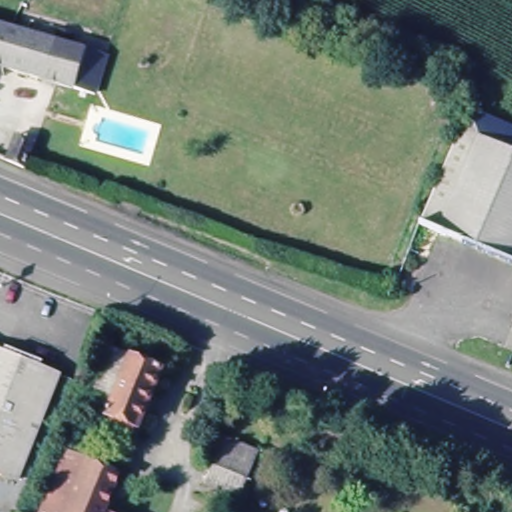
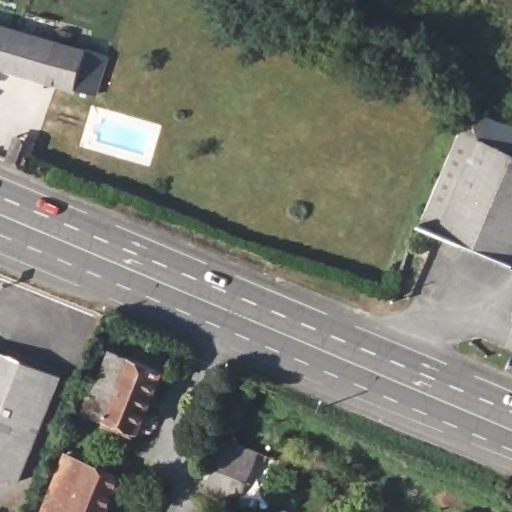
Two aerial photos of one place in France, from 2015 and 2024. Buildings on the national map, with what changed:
unchanged [(0,25),(109,57),(100,101),(0,73),(0,25)]
unchanged [(439,190),(473,110),(512,126),(512,264),(423,227),(439,190)]
unchanged [(36,140),(26,167),(6,158),(16,133),(36,140)]
unchanged [(166,365),(139,437),(104,425),(113,396),(96,390),(111,346),(166,365)]
unchanged [(42,425),(19,481),(0,474),(0,350),(62,374),(42,425)]
unchanged [(208,489),(221,457),(205,450),(213,431),(247,446),(257,450),(255,457),(237,501),(208,489)]
unchanged [(120,476),(104,512),(44,512),(67,454),(120,476)]

